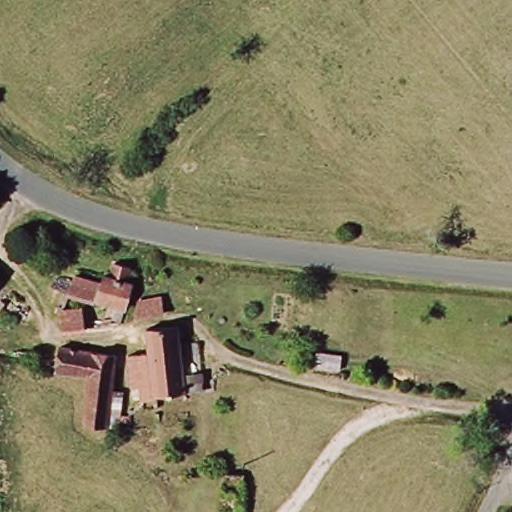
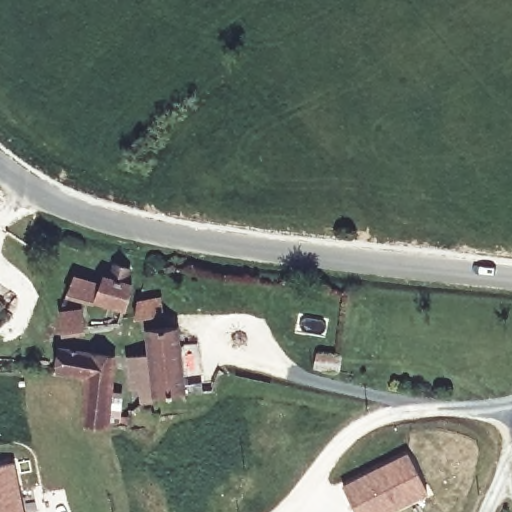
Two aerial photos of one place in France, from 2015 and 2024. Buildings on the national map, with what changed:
unchanged [(104,327),(113,307),(69,291),(75,272),(103,283),(106,273),(113,276),(118,261),(133,267),(127,284),(132,286),(123,310),(118,323),(104,327)]
unchanged [(161,312),(135,318),(135,300),(161,297),(161,312)]
unchanged [(87,332),(60,336),(57,312),(82,308),(87,332)]
unchanged [(205,390),(187,392),(140,398),(139,387),(150,386),(148,373),(127,376),(125,356),(145,352),(143,328),(175,325),(180,341),(194,337),(205,390)]
unchanged [(120,353),(115,430),(92,428),(93,373),(62,370),(64,347),(120,353)]
unchanged [(135,432),(121,431),(121,418),(134,417),(135,432)]
new [(427,493),(390,512),(357,512),(343,485),(407,452),(427,493)]
new [(0,465),(14,462),(24,512),(0,512),(0,465)]
demolished [(244,497),(221,496),(222,477),(245,477),(244,497)]

